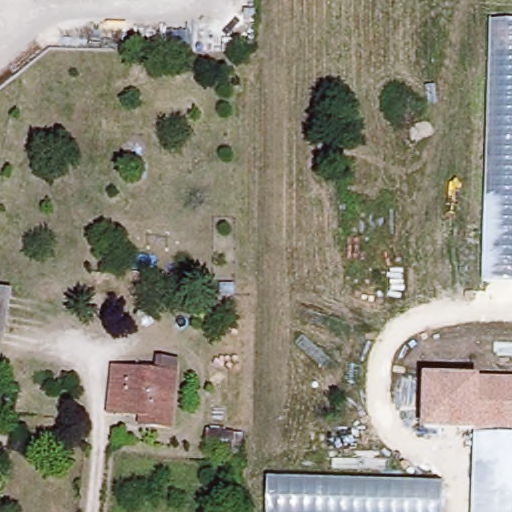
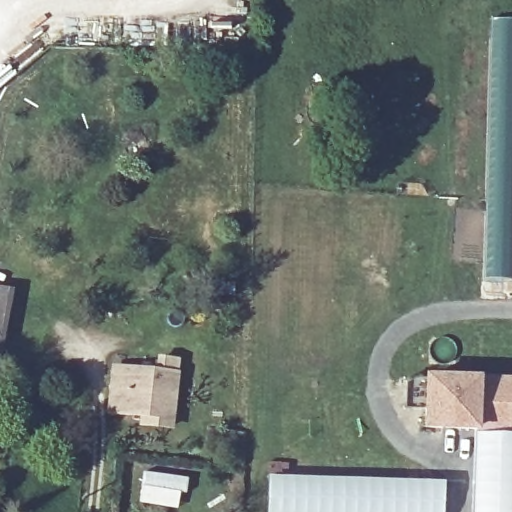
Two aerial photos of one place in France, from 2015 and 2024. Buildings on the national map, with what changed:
unchanged [(512,22),(512,281),(482,280),(488,22),(512,22)]
unchanged [(5,316),(0,345),(0,294),(7,295),(5,316)]
unchanged [(137,424),(109,422),(111,388),(122,388),(128,349),(179,353),(169,439),(151,438),(136,437),(137,424)]
unchanged [(512,376),(512,434),(478,433),(422,431),(424,373),(480,375),(512,376)]
unchanged [(473,433),(478,433),(512,434),(512,512),(471,512),(473,433)]
new [(185,477),(181,508),(138,503),(142,472),(185,477)]
unchanged [(446,480),(445,512),(265,512),(266,476),(446,480)]

